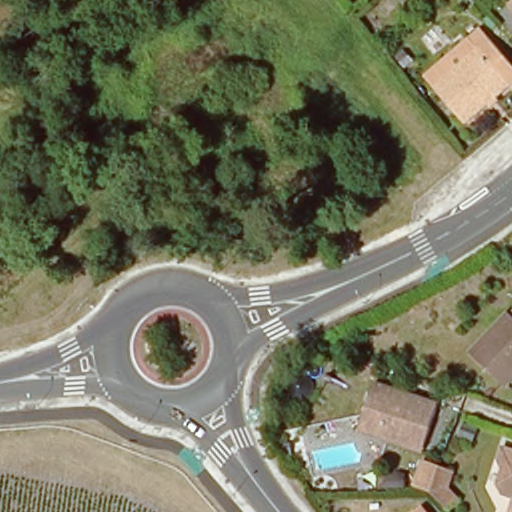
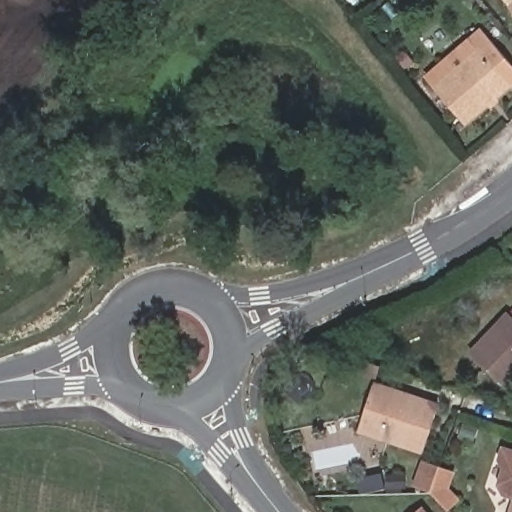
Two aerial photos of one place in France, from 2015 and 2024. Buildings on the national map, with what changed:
unchanged [(509,0),(512,0),(512,18),(502,6),(509,0)]
unchanged [(460,114),(431,80),(421,69),(462,34),(475,23),(506,59),(512,67),(512,70),(501,79),(460,114)]
unchanged [(512,360),(498,374),(466,343),(504,304),(512,311),(512,360)]
unchanged [(387,436),(359,427),(374,382),(436,402),(425,439),(423,448),(387,436)]
unchanged [(510,499),(499,494),(495,481),(501,467),(496,459),(501,446),(512,449),(512,512),(506,512),(510,499)]
unchanged [(445,509),(429,492),(411,487),(420,459),(452,469),(448,486),(459,496),(445,509)]
unchanged [(423,508),(427,512),(419,512),(423,508)]

